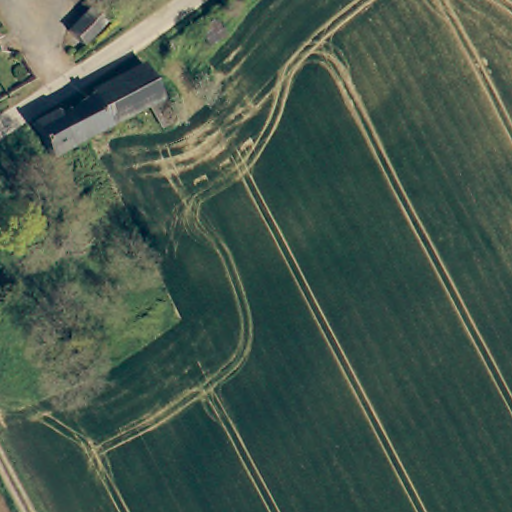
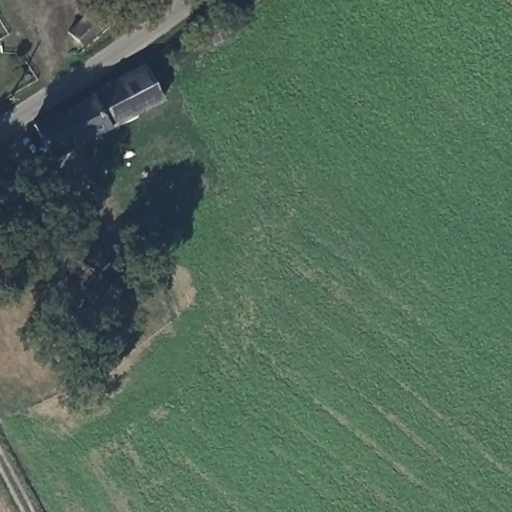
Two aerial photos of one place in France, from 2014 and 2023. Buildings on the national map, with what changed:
unchanged [(86,47),(72,33),(91,13),(105,26),(86,47)]
unchanged [(142,64),(164,101),(90,143),(87,144),(70,114),(90,101),(92,93),(142,64)]
unchanged [(87,144),(57,160),(45,135),(39,124),(60,113),(67,116),(70,114),(87,144)]

